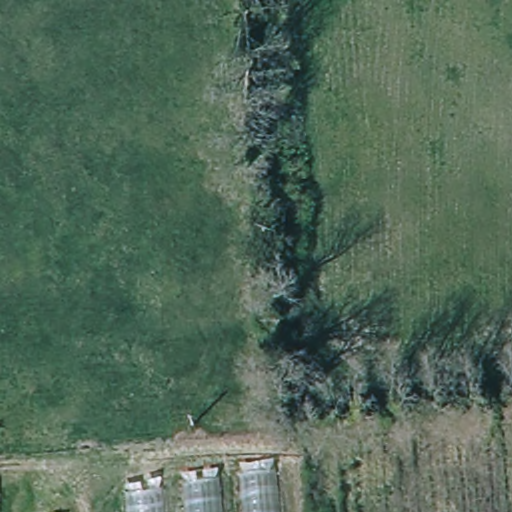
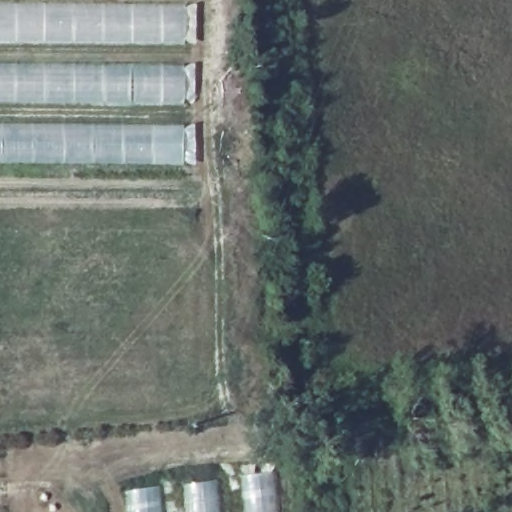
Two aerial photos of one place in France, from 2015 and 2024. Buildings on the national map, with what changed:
new [(0,40),(0,5),(185,7),(184,41),(0,40)]
new [(184,67),(184,101),(0,100),(0,65),(184,67)]
new [(0,162),(0,121),(183,122),(184,163),(0,162)]
unchanged [(273,470),(277,512),(130,512),(128,488),(273,470)]

